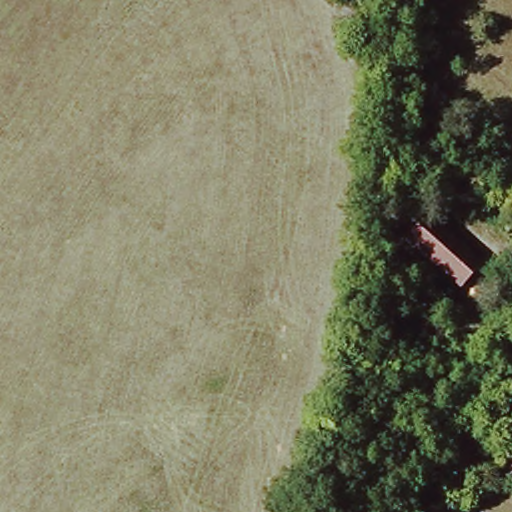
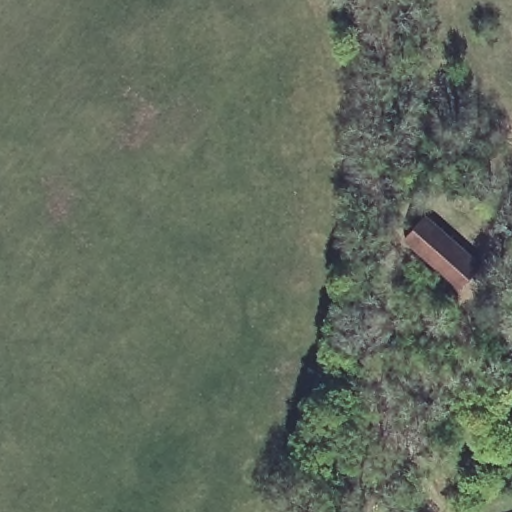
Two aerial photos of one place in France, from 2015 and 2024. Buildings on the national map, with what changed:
unchanged [(402,240),(425,214),(485,266),(461,293),(402,240)]

